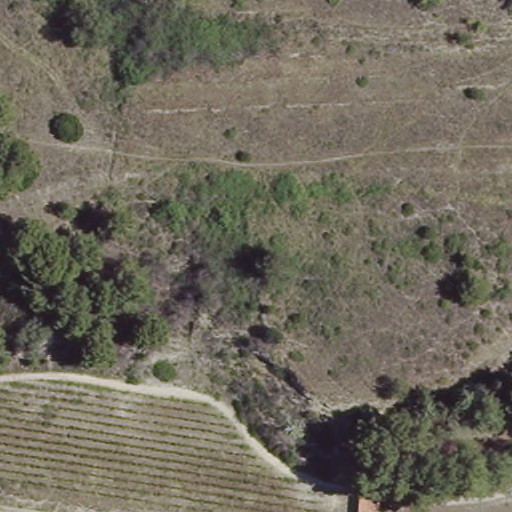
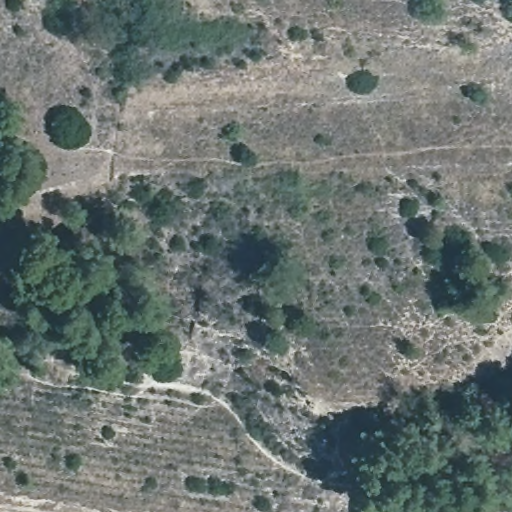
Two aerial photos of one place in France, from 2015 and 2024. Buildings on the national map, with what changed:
unchanged [(367,507),(367,512),(351,512),(351,507),(367,507)]

